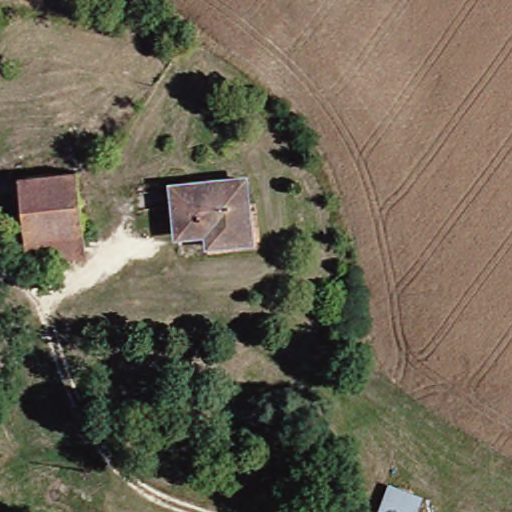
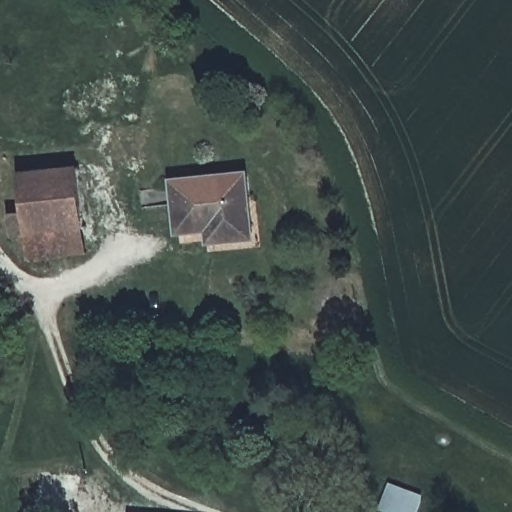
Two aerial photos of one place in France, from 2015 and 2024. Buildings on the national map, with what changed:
unchanged [(35,240),(19,240),(17,215),(28,214),(24,177),(83,167),(91,232),(35,240)]
unchanged [(249,234),(226,235),(224,226),(186,229),(180,180),(251,174),(254,200),(257,234),(249,234)]
unchanged [(92,252),(36,258),(35,240),(91,232),(92,252)]

